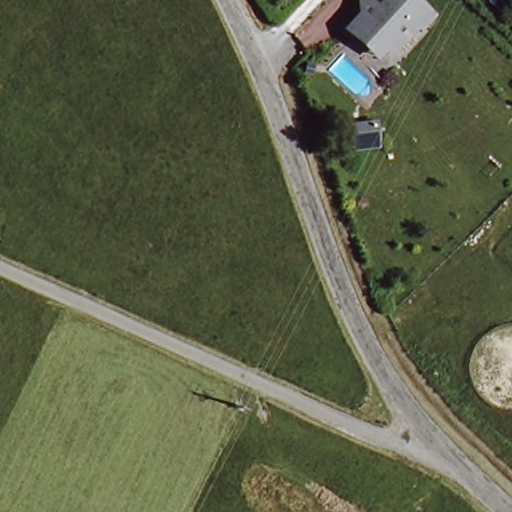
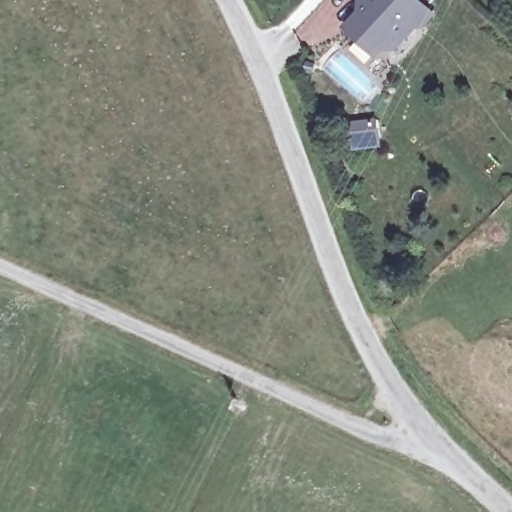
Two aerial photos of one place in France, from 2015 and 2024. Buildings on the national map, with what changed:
unchanged [(348,25),(370,0),(423,0),(434,10),(424,22),(417,22),(397,44),(384,45),(377,51),(360,35),(348,25)]
unchanged [(382,150),(352,154),(348,125),(378,122),(382,150)]

